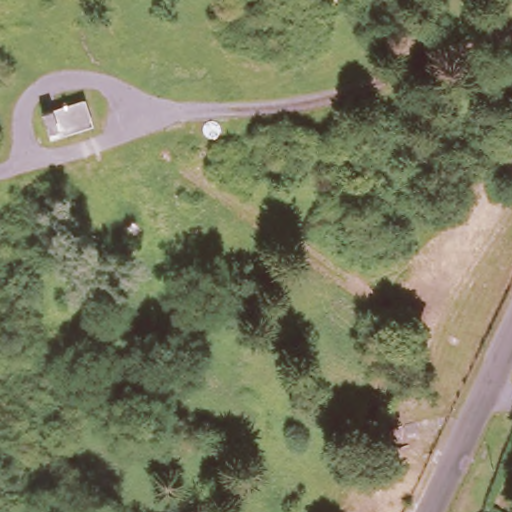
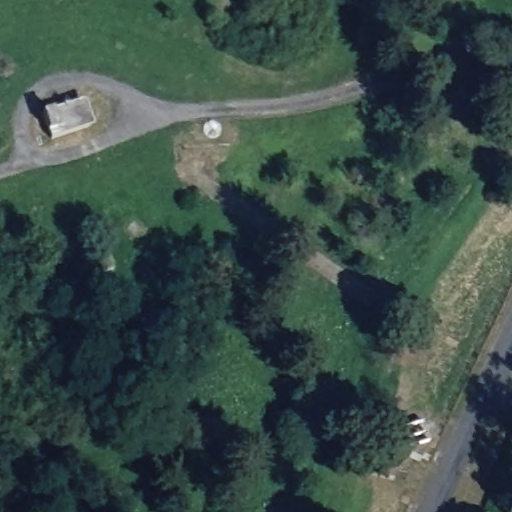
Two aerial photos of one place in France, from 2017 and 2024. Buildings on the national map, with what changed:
unchanged [(89,95),(97,122),(56,136),(47,110),(89,95)]

